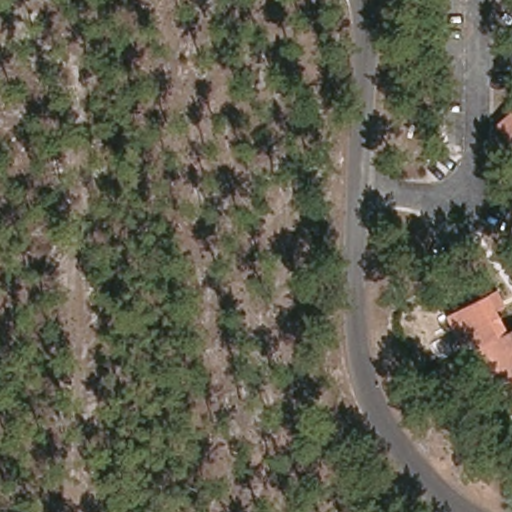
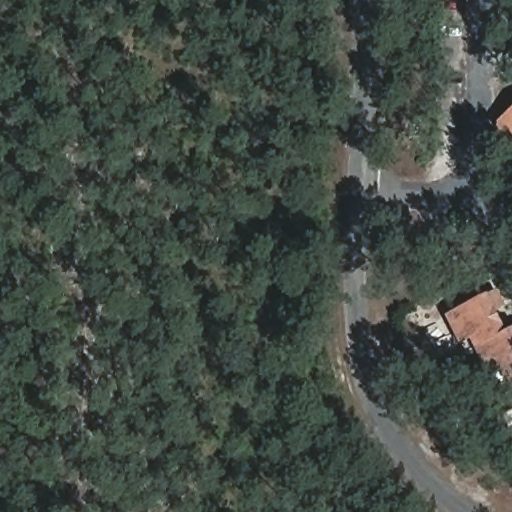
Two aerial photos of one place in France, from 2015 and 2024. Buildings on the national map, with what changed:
unchanged [(512,112),(512,143),(497,124),(512,112)]
unchanged [(485,353),(478,345),(468,351),(452,324),(487,303),(510,338),(485,353)]
unchanged [(512,377),(505,366),(495,371),(485,353),(510,338),(512,337),(512,377)]

